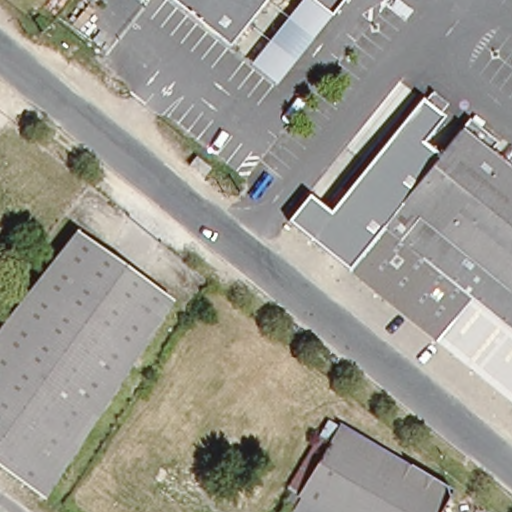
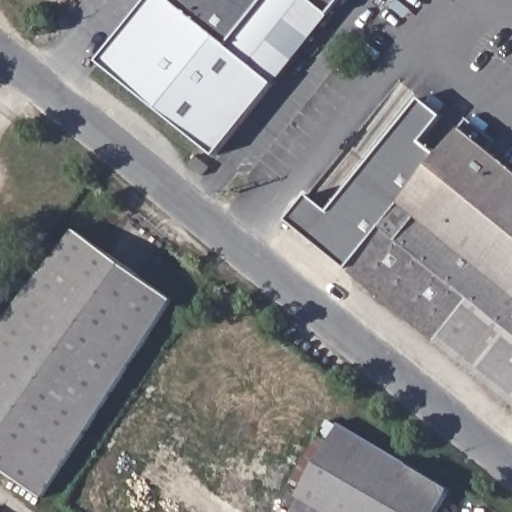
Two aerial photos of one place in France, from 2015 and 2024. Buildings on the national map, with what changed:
new [(100,61),(148,0),(176,0),(229,45),(267,0),(304,0),(251,63),(276,84),(218,155),(100,61)]
unchanged [(176,0),(267,0),(229,45),(176,0)]
new [(304,0),(310,0),(331,17),(276,84),(251,63),(304,0)]
unchanged [(310,0),(345,0),(331,17),(310,0)]
unchanged [(307,194),(331,212),(419,98),(443,117),(423,141),(442,157),(437,163),(428,157),(422,166),(430,172),(350,272),(286,221),(307,194)]
unchanged [(430,172),(422,166),(428,157),(437,163),(442,157),(467,125),(498,146),(489,159),(512,177),(512,338),(468,304),(436,345),(347,275),(350,272),(430,172)]
unchanged [(0,471),(0,323),(66,228),(167,301),(32,493),(0,471)]
unchanged [(512,338),(512,406),(436,345),(468,304),(512,338)]
unchanged [(312,446),(324,453),(337,430),(448,491),(437,512),(275,512),(312,446)]

